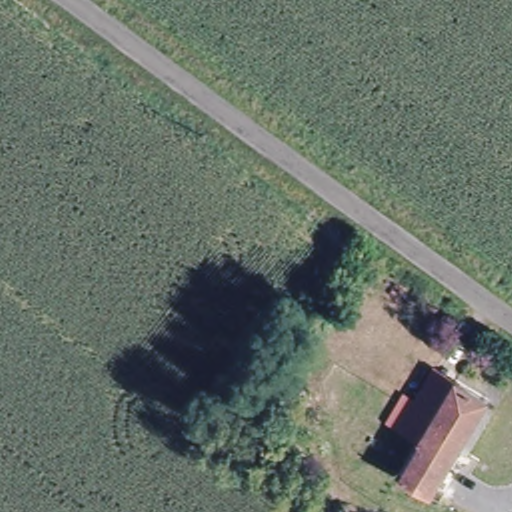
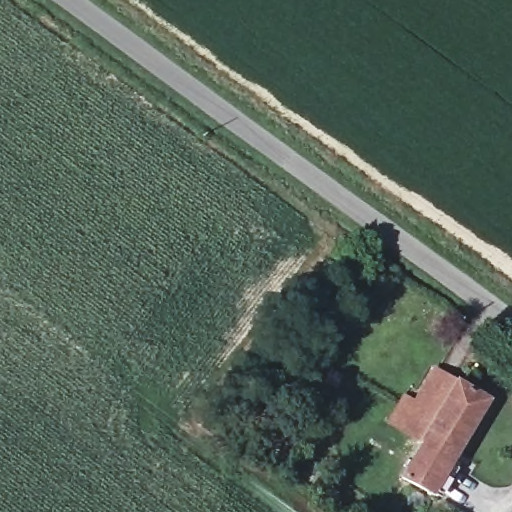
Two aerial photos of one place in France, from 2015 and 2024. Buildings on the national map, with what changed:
unchanged [(446,460),(450,465),(430,493),(397,470),(420,436),(388,416),(404,390),(412,396),(432,364),(485,399),(446,460)]

